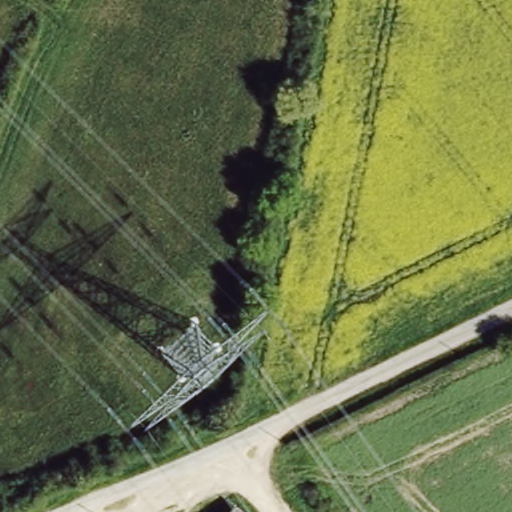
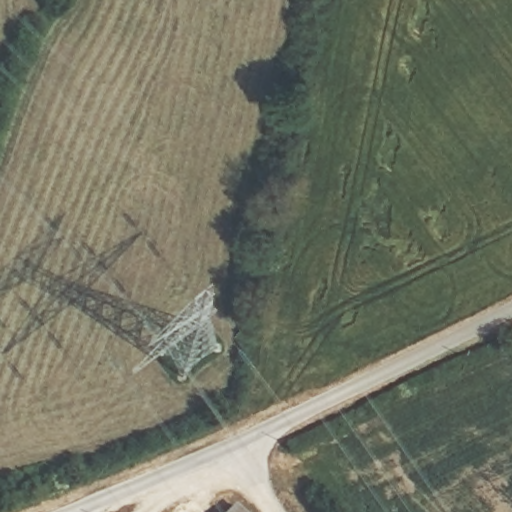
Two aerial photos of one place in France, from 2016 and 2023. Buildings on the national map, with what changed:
unchanged [(241,512),(235,512),(237,509),(241,512)]

